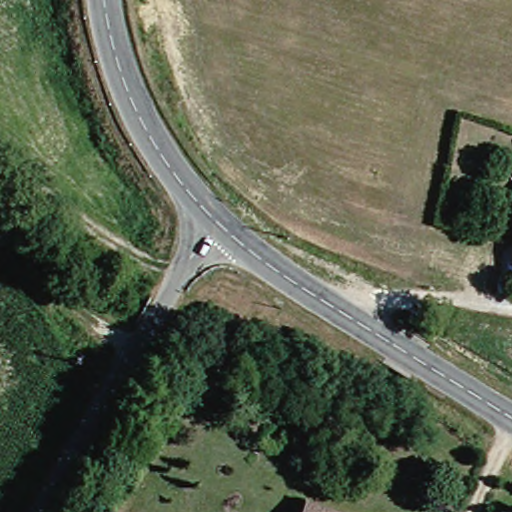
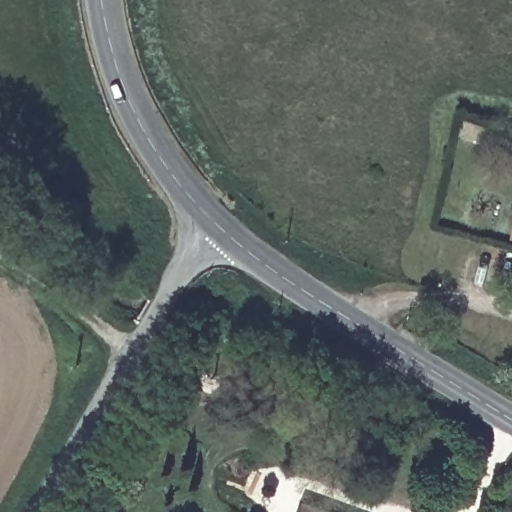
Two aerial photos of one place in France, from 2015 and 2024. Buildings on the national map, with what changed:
unchanged [(333,512),(306,512),(310,504),(333,512)]

